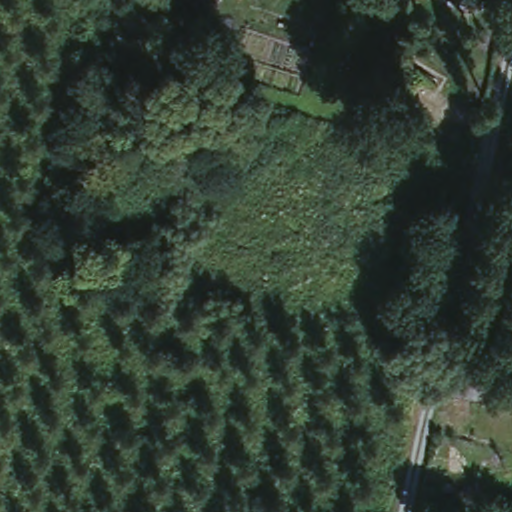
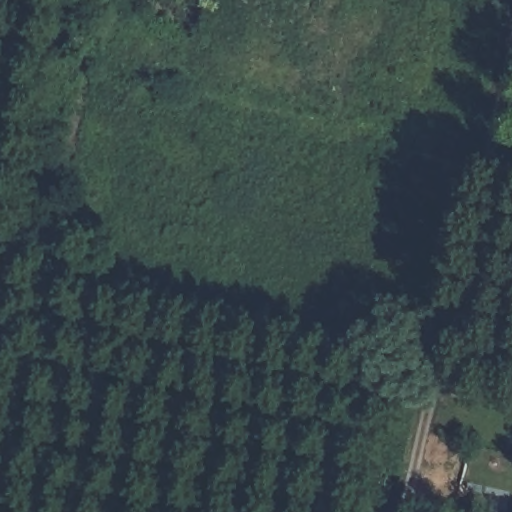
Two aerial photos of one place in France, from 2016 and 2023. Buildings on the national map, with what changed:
[]

